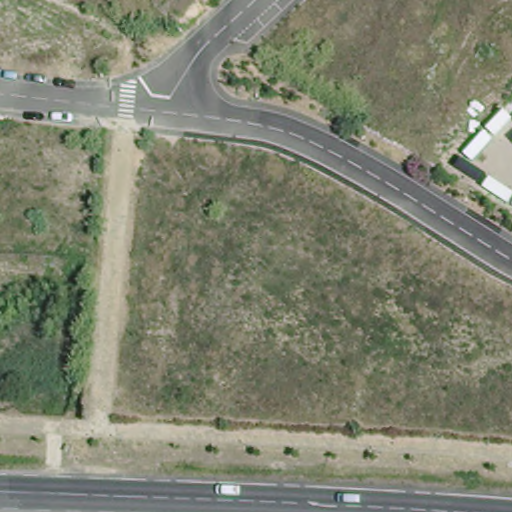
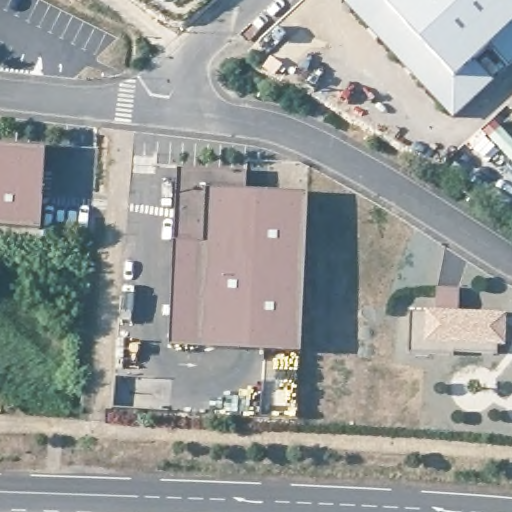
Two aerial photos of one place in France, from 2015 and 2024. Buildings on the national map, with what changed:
new [(509,67),(491,47),(476,61),(494,82),(454,119),(344,4),(348,0),(512,0),(512,65),(509,67)]
new [(42,230),(0,227),(0,144),(47,147),(42,230)]
new [(179,167),(249,171),(248,190),(311,193),(304,352),(201,347),(204,272),(174,271),(179,167)]
new [(174,271),(204,272),(201,347),(171,346),(174,271)]
new [(439,317),(440,291),(463,292),(461,315),(473,316),(502,317),(508,317),(508,331),(507,349),(499,348),(499,357),(456,356),(455,360),(410,357),(412,316),(439,317)]

